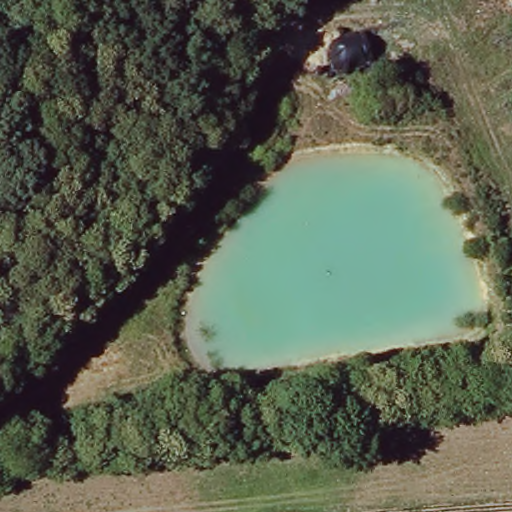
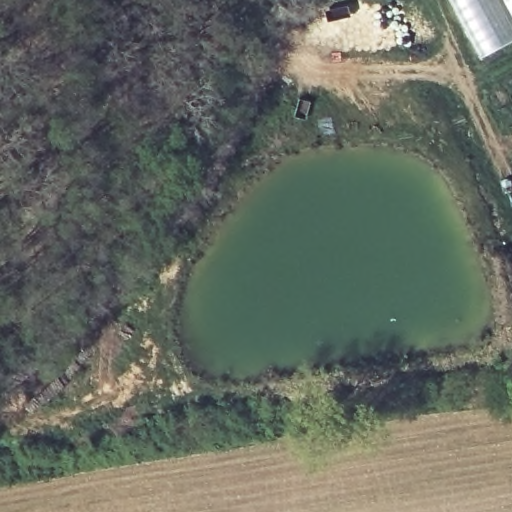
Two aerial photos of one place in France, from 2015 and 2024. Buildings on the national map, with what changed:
new [(451,0),(512,0),(512,41),(481,58),(451,0)]

